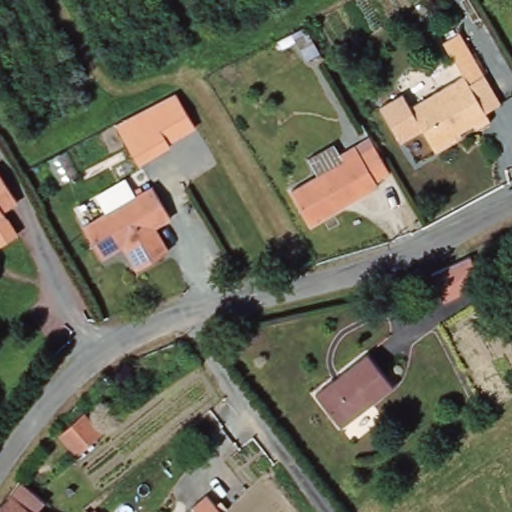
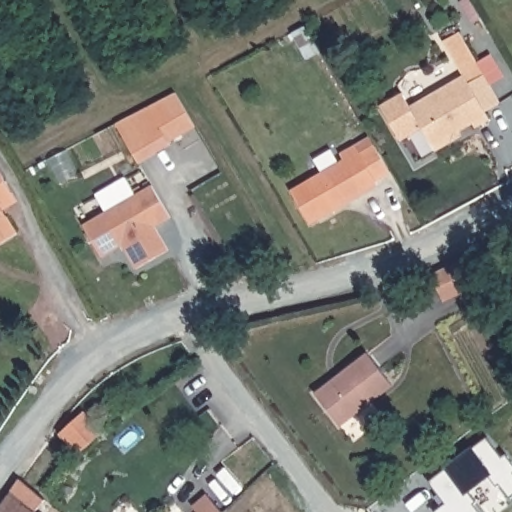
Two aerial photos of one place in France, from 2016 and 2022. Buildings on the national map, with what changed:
unchanged [(320,51),(307,59),(291,32),(305,25),(320,51)]
unchanged [(452,142),(435,151),(410,106),(463,76),(443,41),(459,32),(500,103),(485,112),(490,120),(476,129),(473,124),(460,131),(462,136),(452,142)]
unchanged [(196,126),(169,142),(172,146),(139,165),(116,124),(176,93),(196,126)]
unchanged [(311,220),(291,186),(343,155),(340,149),(355,140),(359,149),(373,140),(390,168),(376,176),(378,180),(352,195),(337,204),(311,220)]
unchanged [(0,203),(0,176),(12,196),(0,203)]
unchanged [(135,195),(132,191),(140,186),(143,191),(152,185),(171,218),(155,227),(169,250),(136,269),(121,244),(117,246),(118,248),(102,257),(83,225),(105,212),(135,195)]
unchanged [(0,236),(0,209),(12,229),(0,236)]
unchanged [(482,282),(443,303),(431,276),(470,255),(482,282)]
unchanged [(341,426),(315,393),(367,353),(393,386),(341,426)]
unchanged [(87,406),(105,430),(77,453),(52,432),(87,406)]
unchanged [(20,475),(45,495),(36,507),(42,512),(0,512),(0,502),(11,487),(20,475)]
unchanged [(200,511),(192,501),(206,490),(223,508),(219,512),(199,512),(200,511)]

